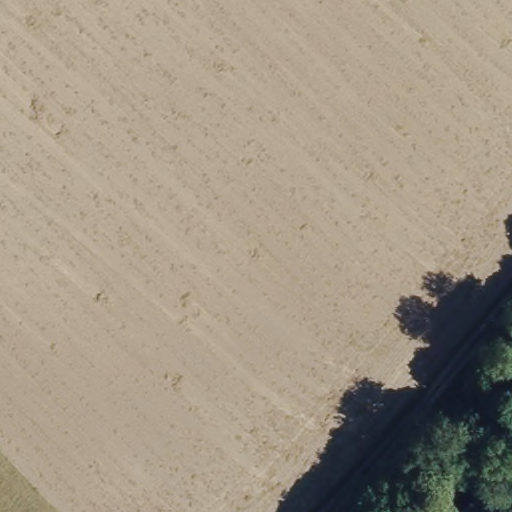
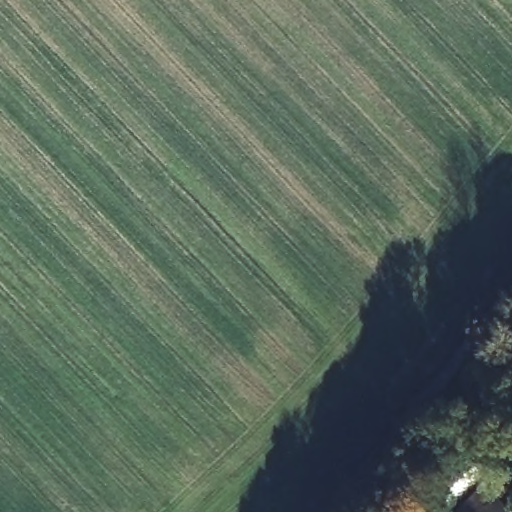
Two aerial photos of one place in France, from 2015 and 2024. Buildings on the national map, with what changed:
unchanged [(512,512),(459,512),(484,485),(512,512)]

